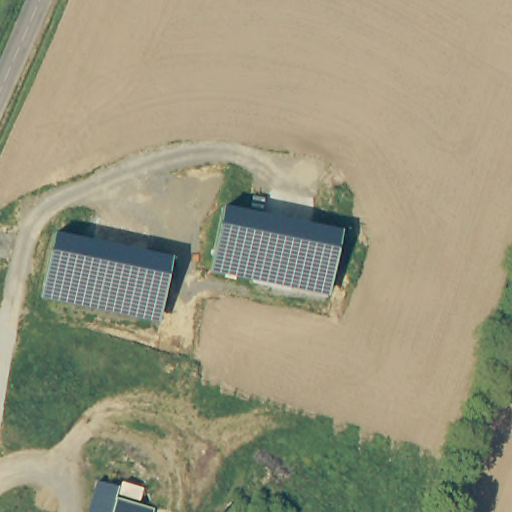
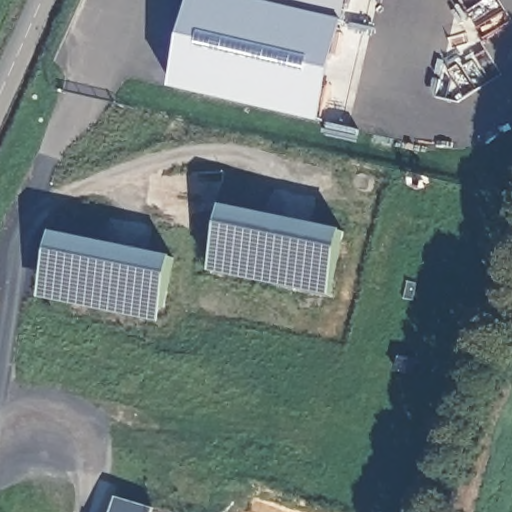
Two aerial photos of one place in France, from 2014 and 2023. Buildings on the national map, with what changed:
new [(174,90),(193,0),(350,0),(323,122),(174,90)]
unchanged [(342,231),(328,296),(210,271),(224,207),(342,231)]
unchanged [(172,258),(158,323),(40,297),(54,233),(172,258)]
unchanged [(122,483),(144,489),(141,500),(120,494),(122,483)]
unchanged [(116,498),(153,509),(152,512),(112,512),(116,498)]

